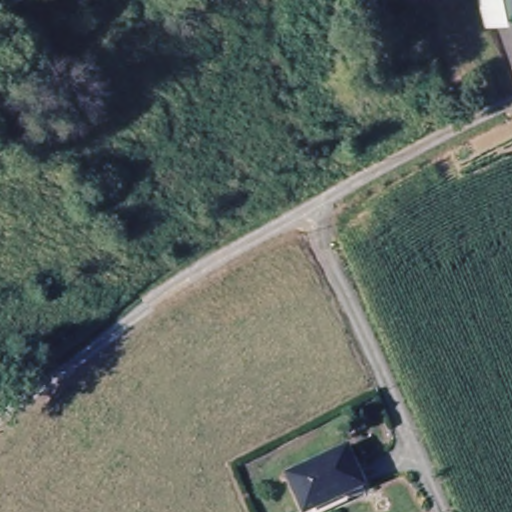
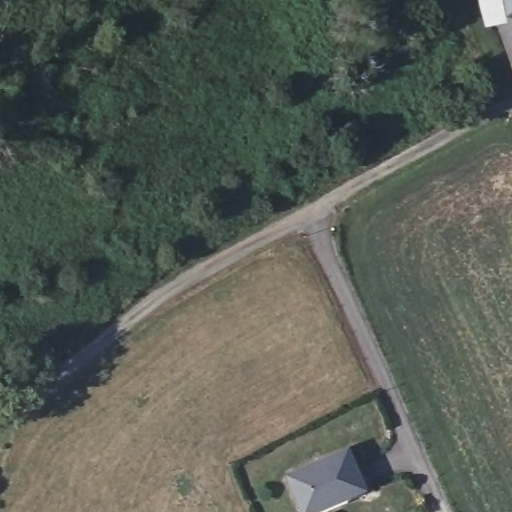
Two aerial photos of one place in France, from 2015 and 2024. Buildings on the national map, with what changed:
unchanged [(505,19),(493,23),(484,0),(512,0),(512,16),(505,19)]
unchanged [(505,19),(512,16),(512,40),(505,19)]
unchanged [(362,495),(320,512),(302,512),(290,483),(347,460),(362,495)]

